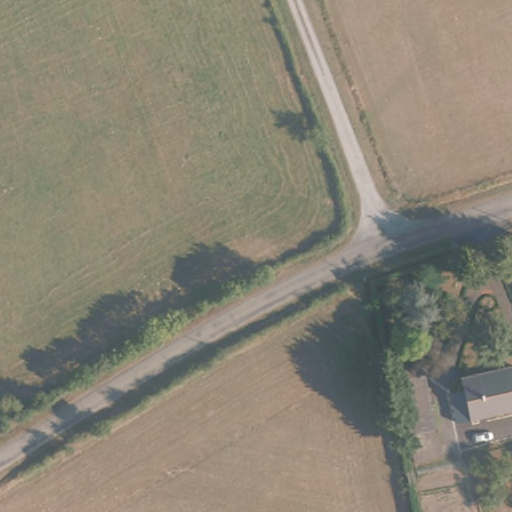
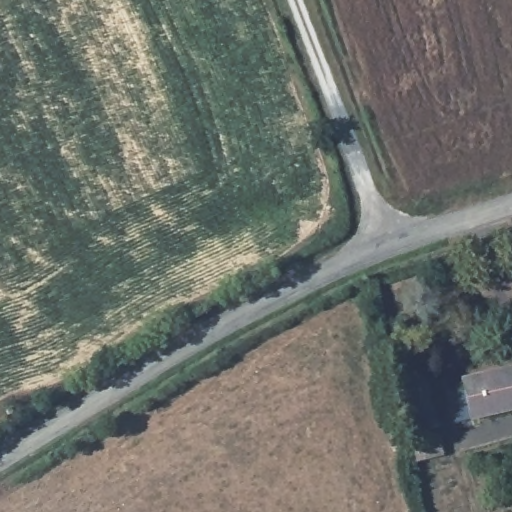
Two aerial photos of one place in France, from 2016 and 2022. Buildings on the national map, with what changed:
unchanged [(512,414),(455,425),(448,393),(460,391),(457,376),(512,365),(512,414)]

